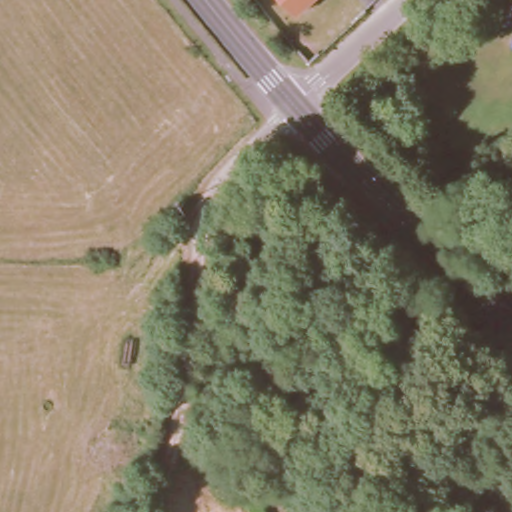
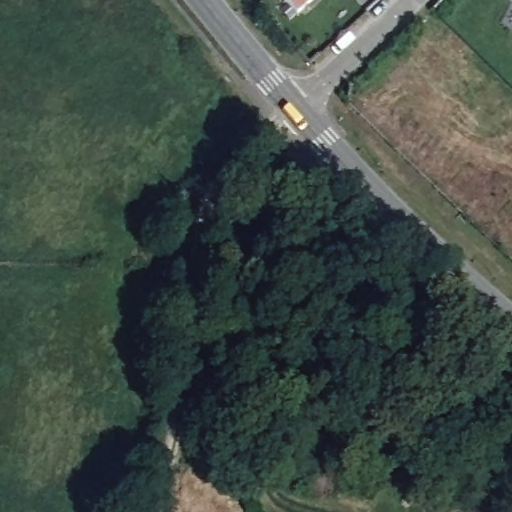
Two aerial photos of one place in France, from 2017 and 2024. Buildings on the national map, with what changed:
unchanged [(298,16),(283,0),(316,0),(298,16)]

